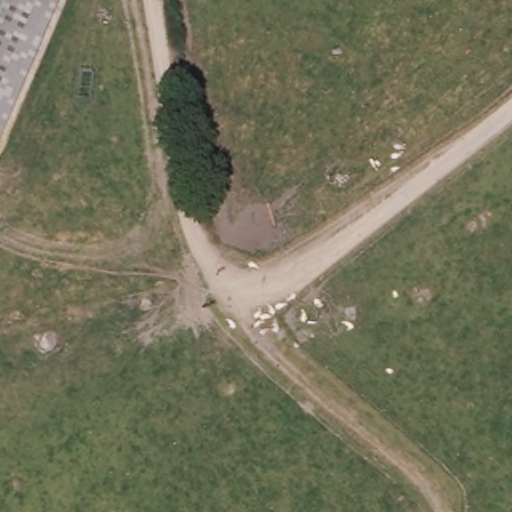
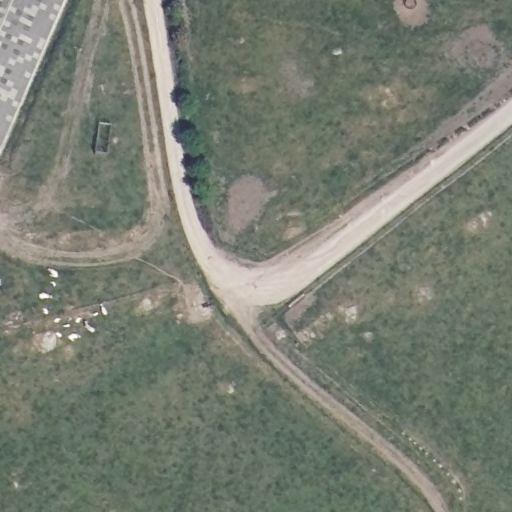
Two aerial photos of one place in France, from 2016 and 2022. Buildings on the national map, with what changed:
unchanged [(0,117),(0,0),(45,0),(0,117)]
unchanged [(4,155),(0,154),(0,117),(45,0),(63,0),(4,155)]

